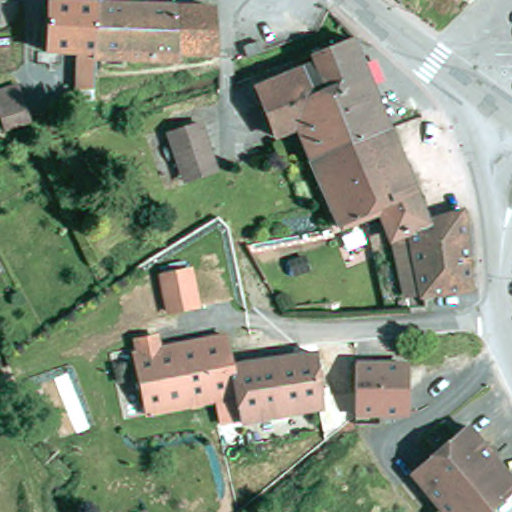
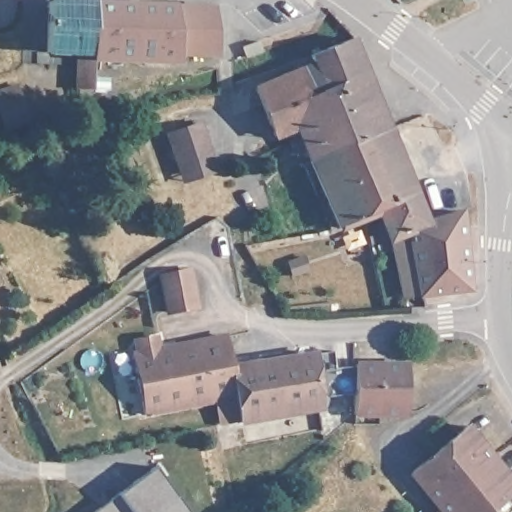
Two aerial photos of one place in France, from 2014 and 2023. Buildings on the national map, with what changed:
unchanged [(98,105),(84,109),(84,59),(51,58),(54,7),(102,9),(100,64),(98,105)]
unchanged [(181,67),(100,64),(102,9),(206,13),(219,14),(222,61),(210,61),(181,60),(181,67)]
unchanged [(244,46),(259,41),(262,52),(247,57),(244,46)]
unchanged [(306,134),(285,143),(265,94),(312,75),(322,100),(334,95),(320,61),(360,44),(397,133),(345,154),(320,165),(306,134)]
unchanged [(29,122),(5,130),(0,116),(0,91),(17,85),(29,122)]
unchanged [(186,174),(175,139),(206,129),(217,164),(221,176),(190,186),(186,174)]
unchanged [(345,154),(397,133),(438,227),(419,234),(403,242),(390,214),(348,231),(320,165),(345,154)]
unchanged [(432,301),(432,297),(419,234),(438,227),(472,216),(481,295),(435,301),(432,301)]
unchanged [(415,300),(403,242),(419,234),(432,297),(415,300)]
unchanged [(163,275),(190,270),(197,306),(170,311),(163,275)]
unchanged [(304,361),(316,357),(323,413),(242,427),(237,400),(145,420),(139,388),(132,360),(228,340),(233,370),(233,372),(304,361)]
unchanged [(360,363),(406,364),(405,414),(355,413),(355,378),(355,367),(356,363),(360,363)]
unchanged [(447,510),(417,473),(471,426),(512,476),(512,496),(493,512),(443,512),(447,510)]
new [(186,512),(97,512),(152,470),(186,512)]

